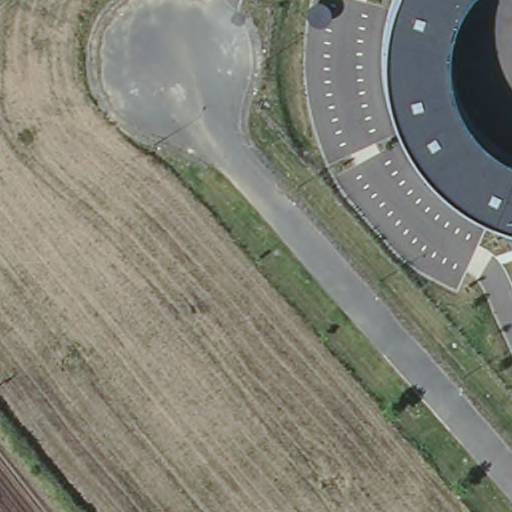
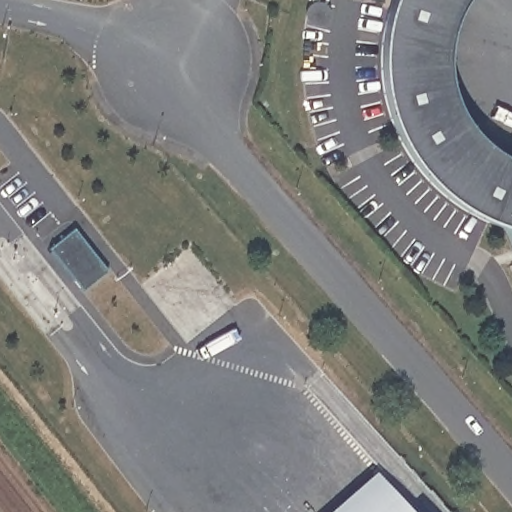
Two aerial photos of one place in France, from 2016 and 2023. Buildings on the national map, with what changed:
unchanged [(492,222),(461,205),(431,180),(411,155),(392,116),(383,77),(383,35),(394,0),(512,0),(512,233),(510,229),(492,222)]
new [(68,282),(46,255),(74,232),(105,270),(82,288),(74,278),(68,282)]
new [(405,512),(343,512),(377,480),(405,512)]

